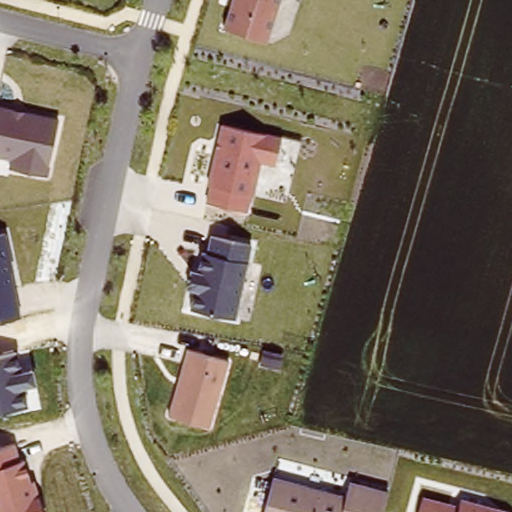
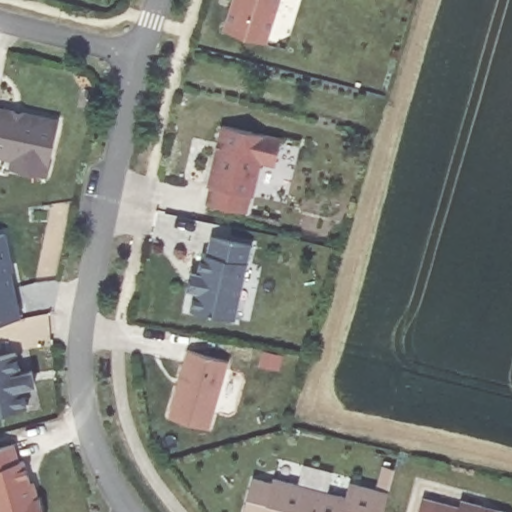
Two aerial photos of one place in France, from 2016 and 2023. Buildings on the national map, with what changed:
unchanged [(268,39),(228,29),(236,0),(280,0),(268,39)]
unchanged [(63,121),(51,178),(18,171),(20,159),(0,156),(0,105),(63,121)]
unchanged [(221,127),(286,140),(279,166),(263,164),(250,214),(205,203),(221,127)]
unchanged [(254,248),(238,318),(186,306),(203,232),(254,248)]
unchanged [(25,317),(0,323),(0,236),(10,234),(25,317)]
unchanged [(231,361),(211,428),(172,416),(189,349),(231,361)]
unchanged [(27,406),(0,411),(0,353),(18,350),(27,406)]
unchanged [(29,459),(43,512),(0,512),(0,449),(15,445),(21,460),(29,459)]
unchanged [(344,492),(347,478),(387,488),(381,512),(266,512),(274,475),(344,492)]
unchanged [(458,503),(460,496),(507,507),(512,512),(420,512),(424,496),(458,503)]

